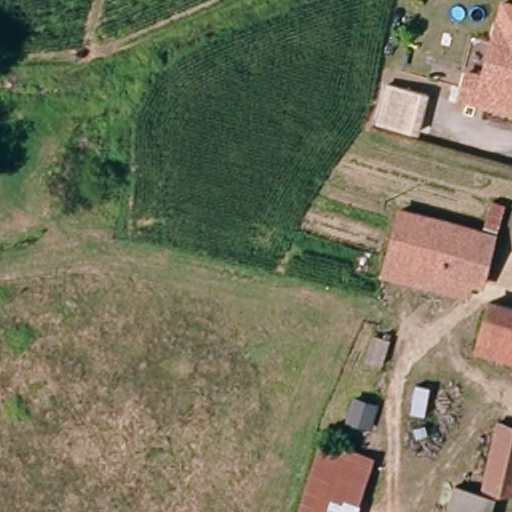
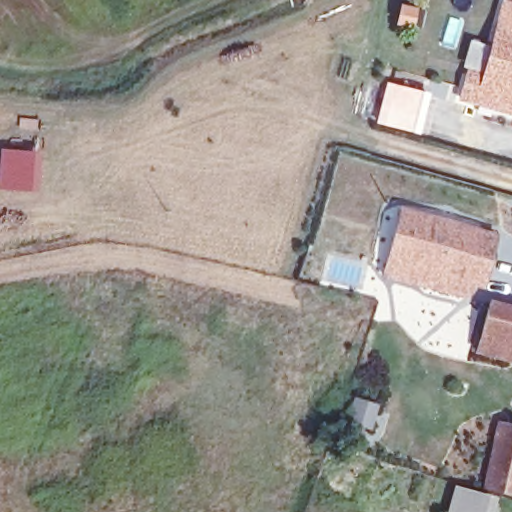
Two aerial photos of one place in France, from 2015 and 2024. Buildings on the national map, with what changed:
new [(489,79),(474,75),(467,101),(459,100),(468,69),(462,67),(469,40),(490,47),(503,0),(512,2),(512,26),(504,24),(489,79)]
unchanged [(467,101),(474,75),(489,79),(504,24),(512,26),(512,113),(484,106),(467,101)]
unchanged [(425,136),(385,126),(394,89),(434,99),(425,136)]
new [(42,151),(40,192),(0,189),(0,148),(42,151)]
unchanged [(481,230),(489,200),(505,204),(484,287),(467,283),(481,230)]
unchanged [(467,283),(464,293),(384,272),(401,209),(481,230),(467,283)]
unchanged [(491,303),(512,310),(512,361),(476,351),(491,303)]
unchanged [(381,365),(365,360),(372,334),(388,339),(381,365)]
unchanged [(367,430),(347,423),(354,403),(374,410),(367,430)]
unchanged [(504,427),(512,429),(512,495),(487,488),(504,427)]
demolished [(358,512),(303,512),(326,449),(375,467),(358,512)]
unchanged [(458,488),(491,498),(486,512),(451,512),(458,488)]

